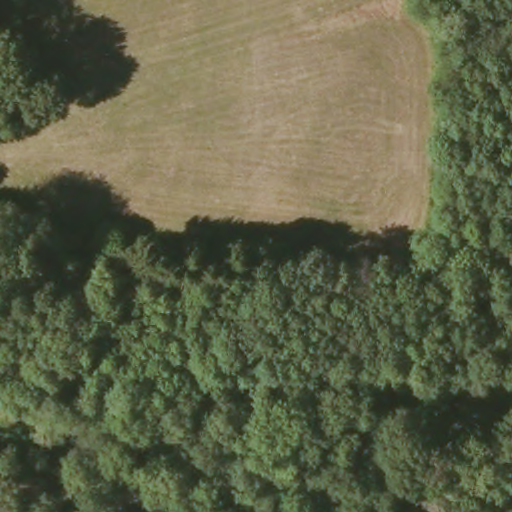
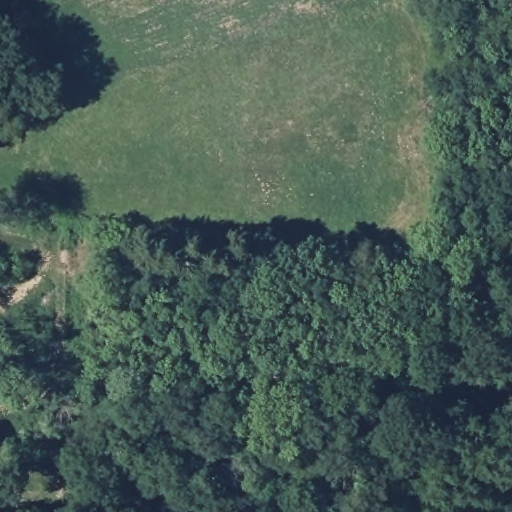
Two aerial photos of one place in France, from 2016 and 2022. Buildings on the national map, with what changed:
[]

